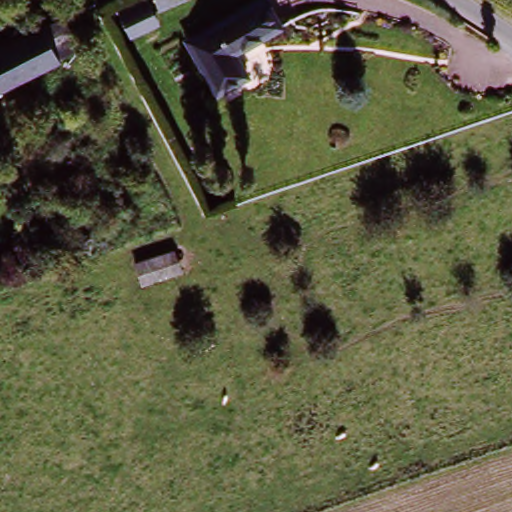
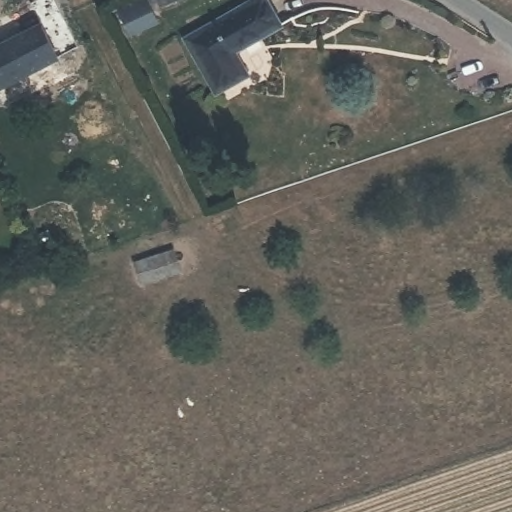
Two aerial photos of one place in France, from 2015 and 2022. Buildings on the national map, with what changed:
unchanged [(267,0),(280,30),(234,50),(243,71),(214,84),(191,34),(267,0)]
unchanged [(58,13),(75,50),(0,86),(0,42),(58,13)]
unchanged [(174,249),(181,265),(145,278),(140,260),(174,249)]

